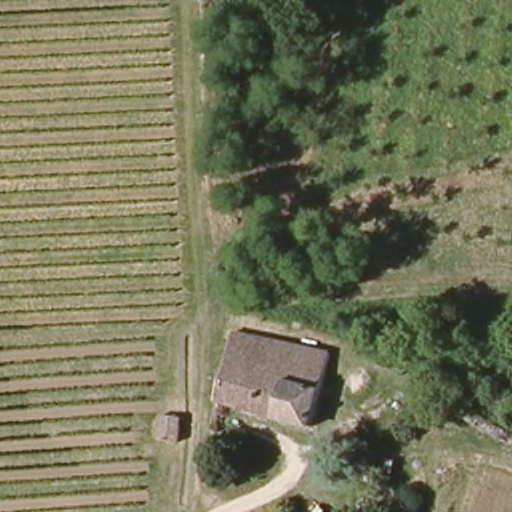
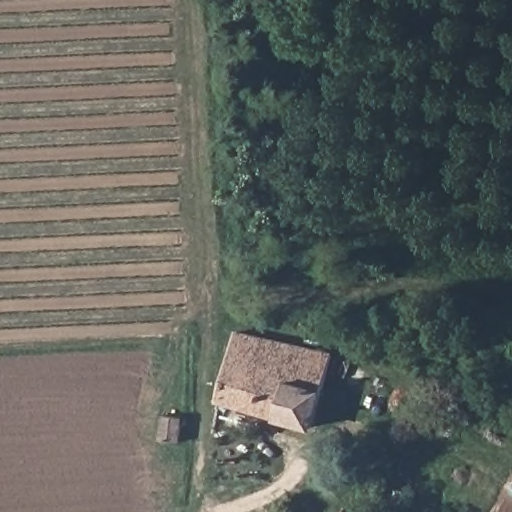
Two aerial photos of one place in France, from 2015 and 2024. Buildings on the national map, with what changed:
unchanged [(333,353),(313,426),(216,400),(236,331),(333,353)]
unchanged [(182,440),(159,438),(162,416),(182,416),(182,440)]

